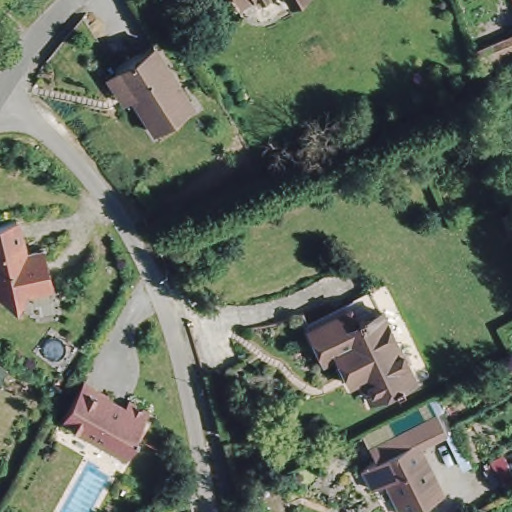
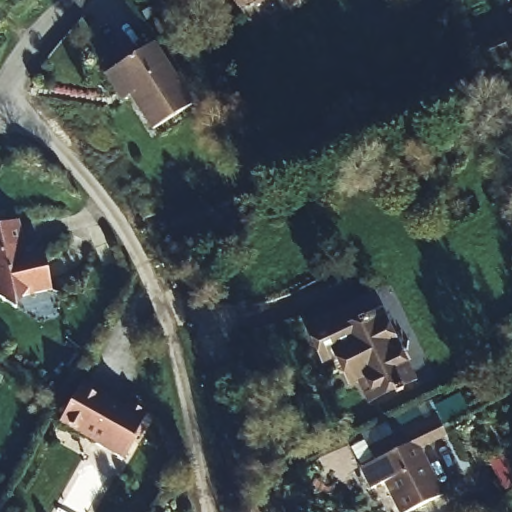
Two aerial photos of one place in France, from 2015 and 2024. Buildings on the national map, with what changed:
unchanged [(290,2),(289,0),(293,0),(290,2)]
unchanged [(491,71),(479,76),(477,72),(470,48),(512,31),(512,61),(491,71)]
unchanged [(190,109),(150,130),(130,93),(121,99),(105,73),(120,64),(154,45),(190,109)]
unchanged [(0,223),(12,221),(19,256),(38,252),(47,291),(17,296),(10,308),(0,300),(0,223)]
unchanged [(410,377),(375,395),(372,391),(363,395),(353,379),(345,383),(330,355),(320,360),(303,329),(333,314),(335,316),(345,311),(350,320),(374,308),(410,377)]
unchanged [(103,399),(102,401),(120,411),(125,404),(145,416),(133,438),(130,438),(118,459),(89,442),(87,445),(55,427),(78,386),(103,399)]
unchanged [(361,442),(430,406),(440,426),(414,440),(443,494),(410,512),(401,512),(392,497),(379,504),(360,468),(371,462),(361,442)]

